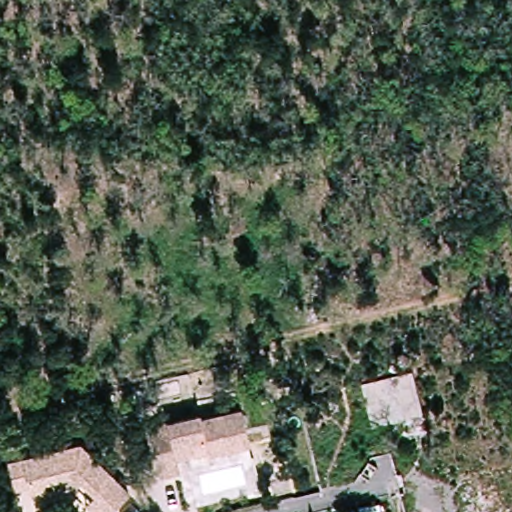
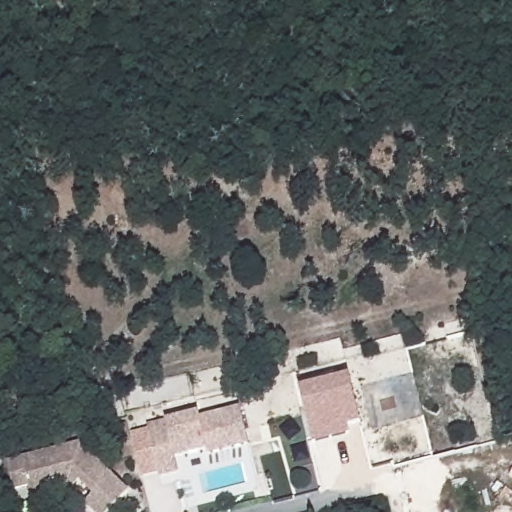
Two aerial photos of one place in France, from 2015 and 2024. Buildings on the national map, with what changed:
new [(313,446),(298,388),(349,376),(360,423),(349,426),(351,436),(313,446)]
unchanged [(181,469),(161,473),(150,423),(201,411),(201,416),(242,407),(251,441),(210,451),(213,461),(181,469)]
unchanged [(84,501),(88,497),(93,491),(79,478),(70,487),(58,475),(41,480),(44,490),(30,493),(27,483),(13,486),(6,460),(78,442),(127,488),(105,512),(96,512),(84,501)]

